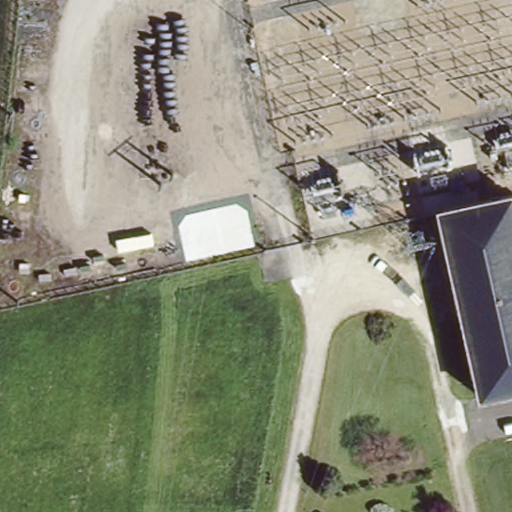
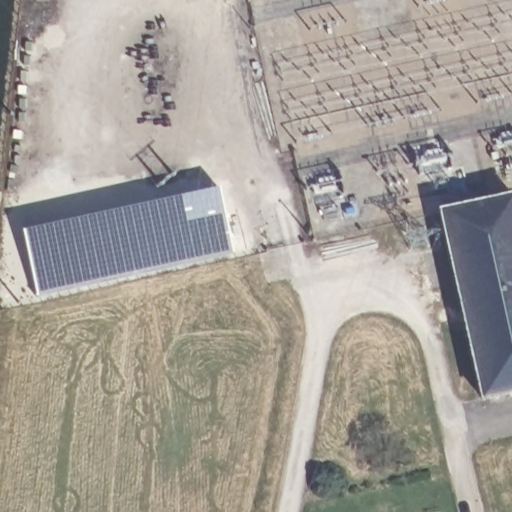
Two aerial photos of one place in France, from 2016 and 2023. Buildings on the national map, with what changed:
new [(223,184),(237,249),(37,293),(23,228),(223,184)]
unchanged [(481,400),(440,212),(512,196),(512,393),(481,400)]

